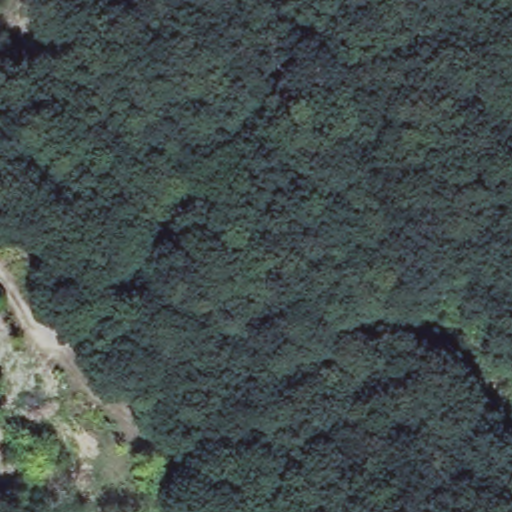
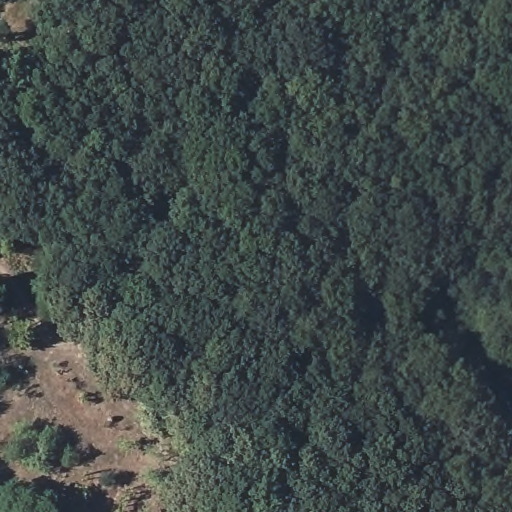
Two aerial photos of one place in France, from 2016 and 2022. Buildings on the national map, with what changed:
[]

